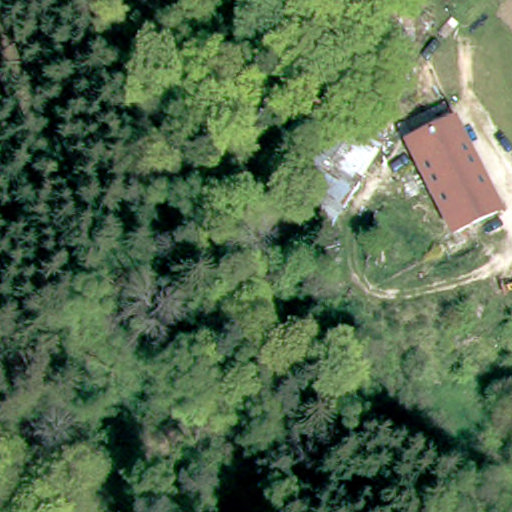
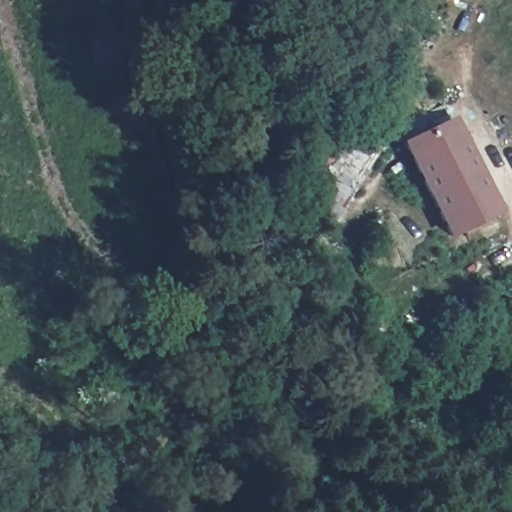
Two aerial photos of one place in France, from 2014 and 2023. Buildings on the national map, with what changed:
unchanged [(451,239),(392,134),(433,100),(492,215),(451,239)]
unchanged [(349,182),(322,169),(340,136),(370,150),(349,182)]

